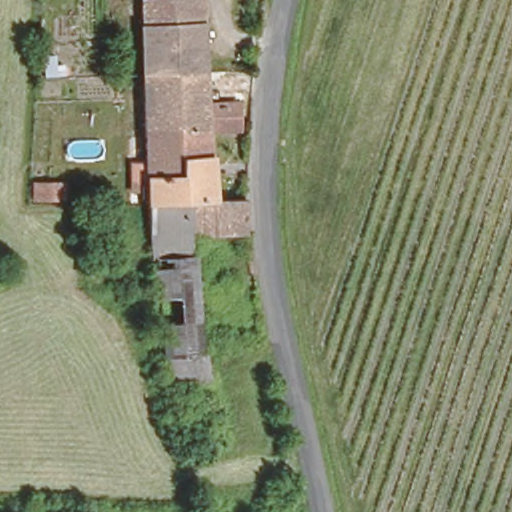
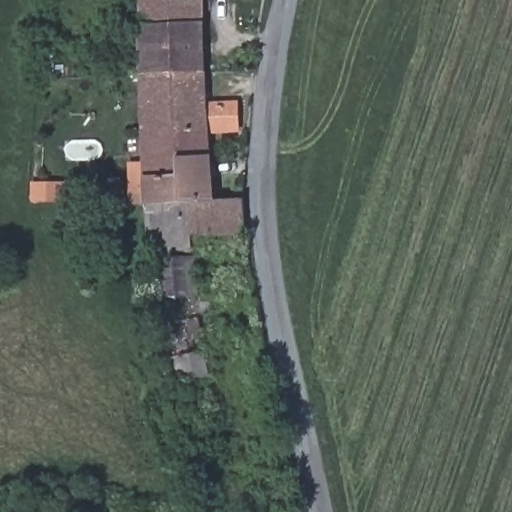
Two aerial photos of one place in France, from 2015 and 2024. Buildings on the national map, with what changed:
unchanged [(142,29),(141,0),(198,0),(199,26),(142,29)]
unchanged [(143,79),(142,29),(199,26),(202,75),(143,79)]
unchanged [(203,132),(207,205),(147,207),(143,79),(202,75),(204,105),(233,105),(235,131),(203,132)]
unchanged [(96,248),(94,200),(93,175),(104,174),(105,200),(109,247),(96,248)]
unchanged [(184,237),(186,256),(153,257),(149,257),(147,207),(207,205),(241,204),(239,234),(184,237)]
unchanged [(165,318),(162,298),(153,257),(186,256),(197,312),(165,318)]
unchanged [(201,381),(202,392),(191,394),(189,383),(177,385),(165,318),(197,312),(210,380),(201,381)]

